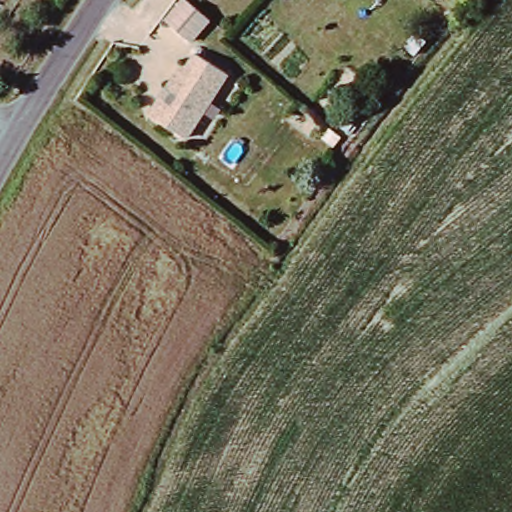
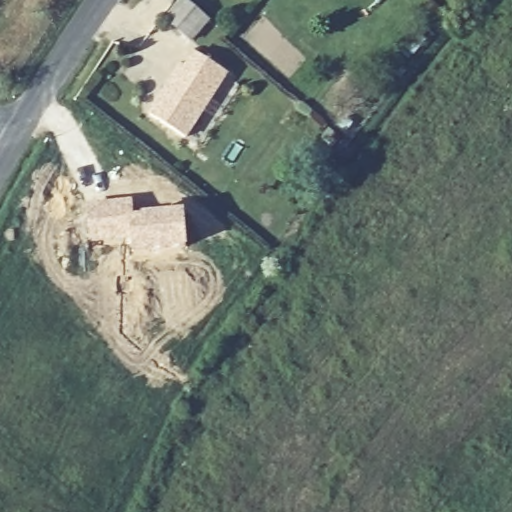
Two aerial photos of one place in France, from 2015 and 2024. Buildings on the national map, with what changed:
new [(185,1),(212,23),(195,44),(168,21),(185,1)]
unchanged [(164,100),(186,72),(199,54),(231,76),(185,140),(149,115),(161,97),(164,100)]
new [(132,199),(134,214),(185,210),(189,251),(128,257),(128,244),(87,245),(84,202),(132,199)]

